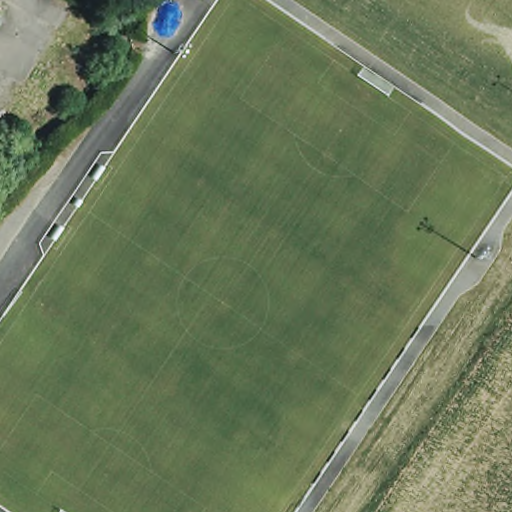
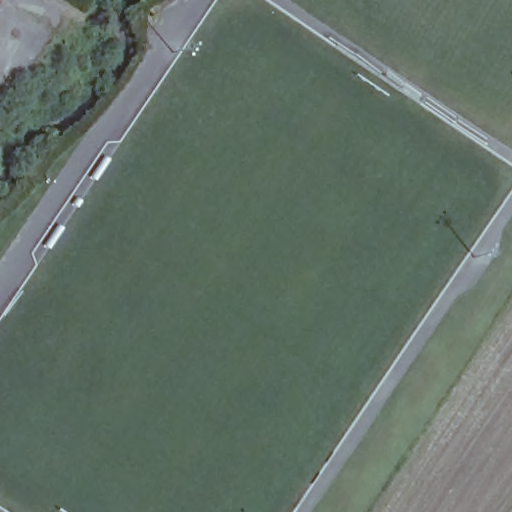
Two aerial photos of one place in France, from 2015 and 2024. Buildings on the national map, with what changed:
[]

